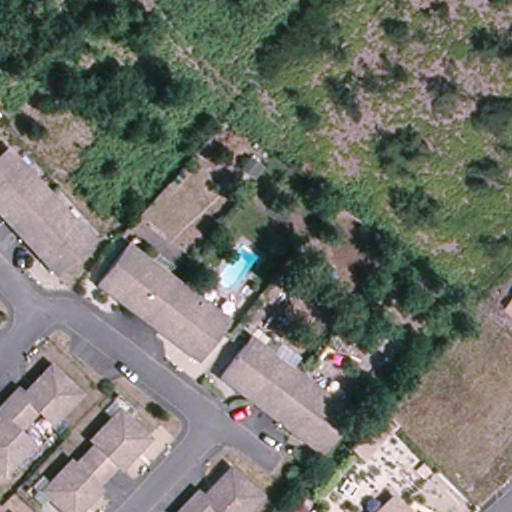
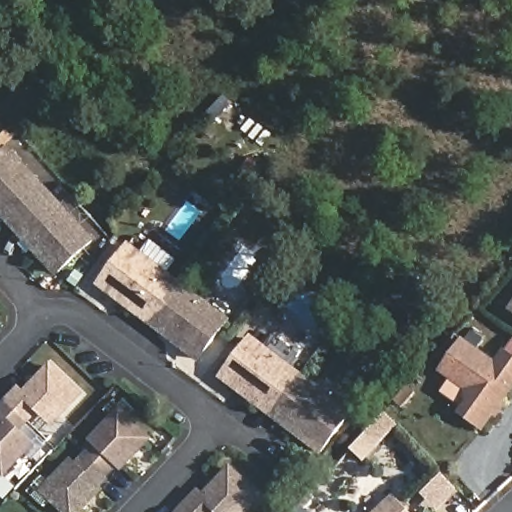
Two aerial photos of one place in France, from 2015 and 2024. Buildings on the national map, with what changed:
unchanged [(31,213),(15,227),(0,211),(0,158),(9,149),(51,194),(31,213)]
unchanged [(94,240),(58,273),(15,227),(31,213),(51,194),(94,240)]
unchanged [(182,285),(152,323),(103,286),(132,247),(182,285)]
unchanged [(230,322),(201,361),(152,323),(182,285),(230,322)]
unchanged [(512,308),(512,312),(510,310),(512,308)]
new [(458,413),(465,404),(463,389),(439,371),(462,337),(495,360),(503,348),(512,354),(512,392),(505,401),(508,404),(497,419),(494,417),(484,433),(458,413)]
unchanged [(303,377),(273,416),(225,379),(254,340),(303,377)]
unchanged [(16,392),(21,397),(48,368),(77,395),(58,417),(43,417),(36,411),(27,422),(6,403),(16,392)]
unchanged [(353,415),(323,454),(273,416),(303,377),(353,415)]
unchanged [(27,422),(16,433),(24,440),(24,454),(5,476),(0,471),(0,420),(1,419),(0,418),(0,410),(6,403),(27,422)]
unchanged [(96,441),(93,437),(114,414),(127,414),(149,436),(121,465),(117,460),(107,471),(86,453),(96,441)]
unchanged [(107,471),(97,482),(101,486),(77,512),(69,512),(50,494),(51,481),(72,459),(76,463),(86,453),(107,471)]
unchanged [(187,506),(198,494),(203,499),(231,471),(260,499),(248,512),(194,512),(187,506)]
unchanged [(409,512),(376,512),(394,495),(409,512)]
unchanged [(187,506),(194,512),(182,512),(187,506)]

